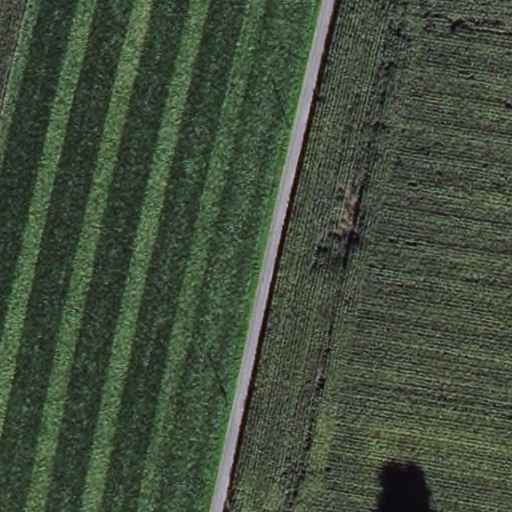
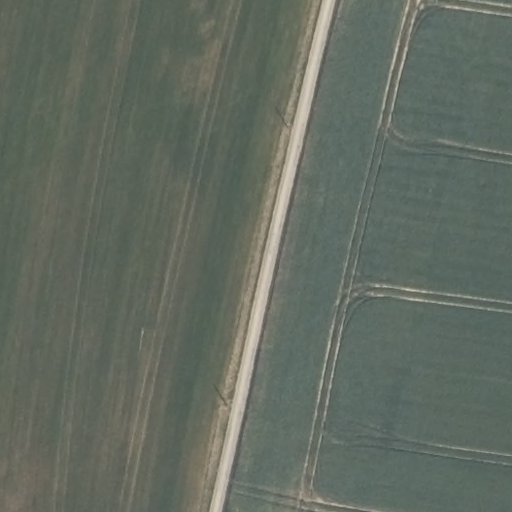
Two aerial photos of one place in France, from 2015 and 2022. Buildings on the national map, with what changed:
[]

